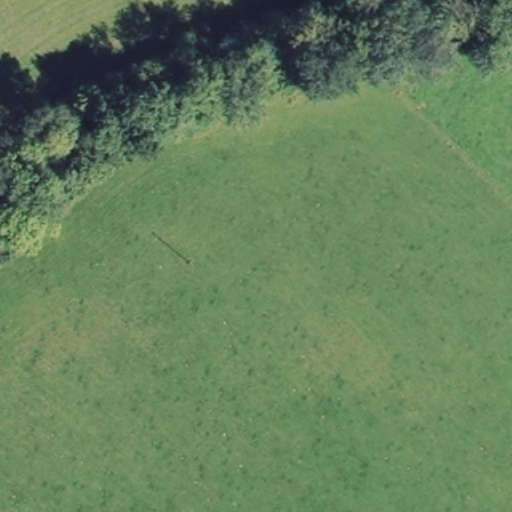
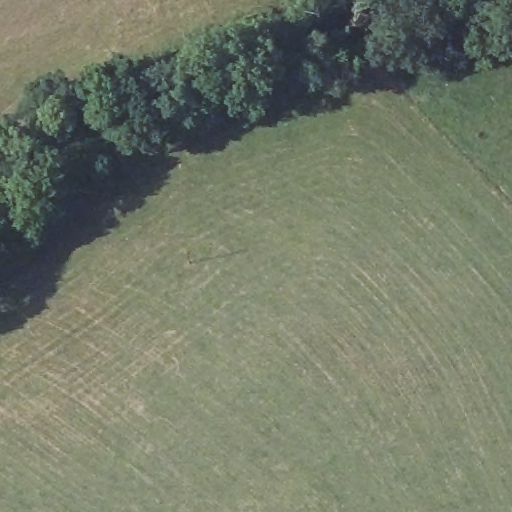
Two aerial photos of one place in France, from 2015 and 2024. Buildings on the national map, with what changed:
[]

